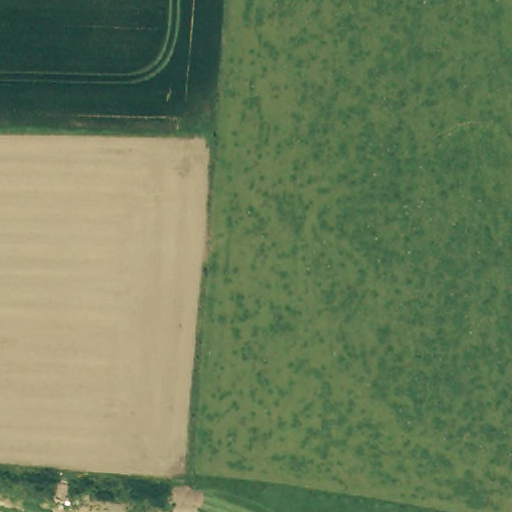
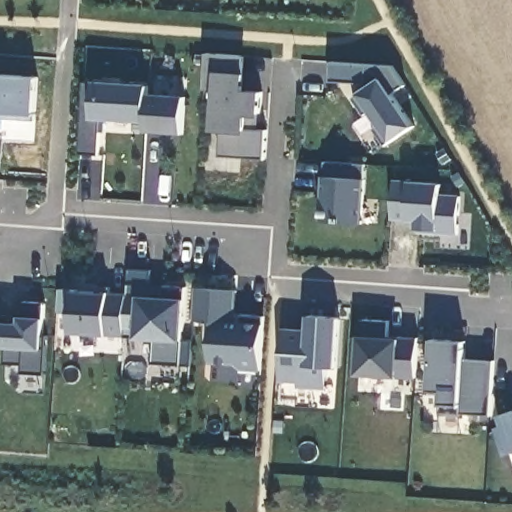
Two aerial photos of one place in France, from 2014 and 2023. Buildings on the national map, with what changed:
new [(241,56),(246,56),(244,91),(261,92),(260,113),(255,113),(254,129),(266,130),(264,160),(219,156),(221,128),(216,128),(213,128),(215,90),(204,89),(206,54),(241,56)]
new [(391,66),(405,86),(392,95),(413,126),(384,146),(373,129),(380,125),(370,111),(364,116),(352,99),(360,93),(361,84),(330,81),(331,62),(391,66)]
new [(37,77),(34,120),(4,118),(0,118),(0,74),(37,77)]
new [(84,81),(149,86),(149,95),(146,121),(101,118),(99,155),(80,154),(84,81)]
new [(146,121),(149,95),(185,97),(182,134),(146,131),(146,121)]
new [(324,161),(365,164),(360,224),(320,221),(324,161)]
new [(151,270),(150,293),(162,293),(162,286),(185,287),(181,340),(192,341),(190,367),(151,364),(153,339),(136,338),(125,337),(71,333),(72,314),(59,313),(60,289),(81,290),(82,285),(93,286),(110,287),(110,292),(127,294),(129,269),(151,270)]
new [(195,288),(235,291),(234,317),(230,317),(230,323),(239,323),(240,315),(263,317),(260,371),(239,369),(235,364),(210,362),(211,341),(206,341),(207,322),(193,321),(195,288)]
new [(11,316),(11,324),(21,325),(21,318),(23,318),(25,302),(45,303),(42,335),(47,336),(45,375),(21,374),(22,365),(5,364),(6,346),(0,346),(0,315),(11,316)]
new [(282,332),(301,333),(307,333),(308,318),(338,320),(335,371),(325,370),(324,392),(296,390),(296,385),(278,384),(282,332)]
new [(361,320),(388,321),(387,339),(398,340),(398,337),(417,338),(415,378),(357,374),(361,320)]
new [(432,339),(451,341),(450,347),(464,348),(463,359),(493,361),(490,416),(440,413),(441,392),(428,391),(432,339)]
new [(499,429),(505,427),(501,417),(512,413),(512,450),(506,452),(499,429)]

